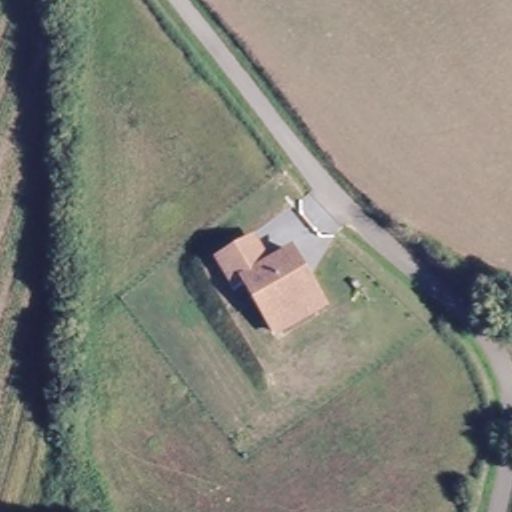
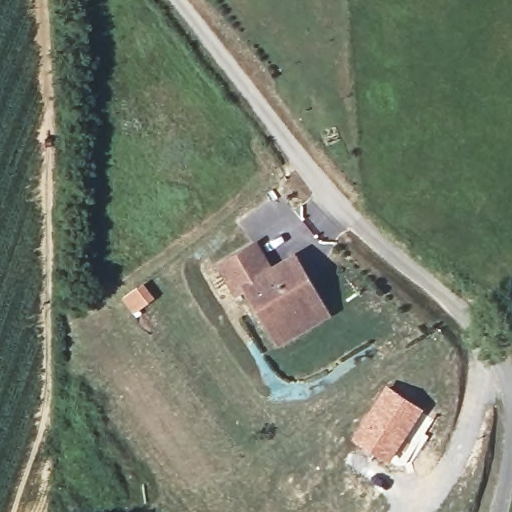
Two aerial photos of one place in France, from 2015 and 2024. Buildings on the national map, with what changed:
unchanged [(282,338),(273,325),(249,282),(238,288),(223,260),(259,240),(273,267),(297,255),(305,269),(313,283),(321,298),(328,312),(282,338)]
new [(386,383),(424,408),(387,463),(350,438),(386,383)]

